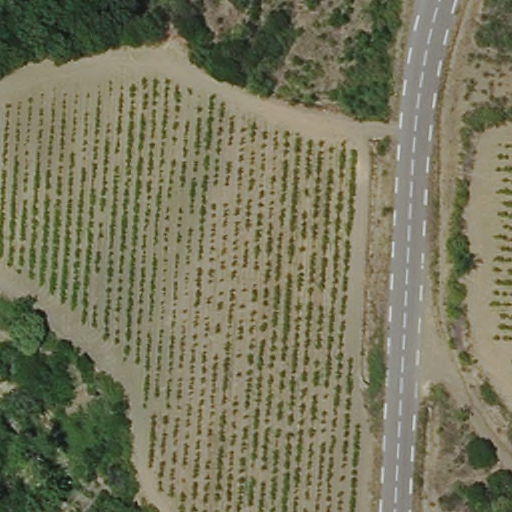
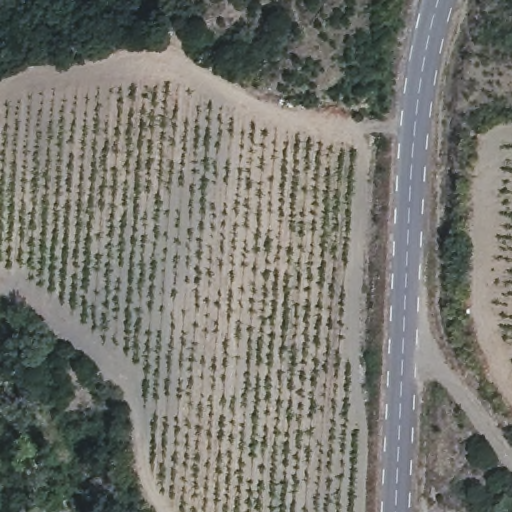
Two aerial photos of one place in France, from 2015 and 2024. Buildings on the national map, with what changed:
[]

